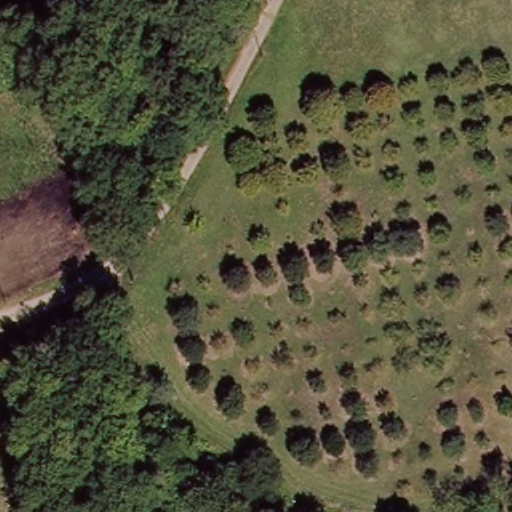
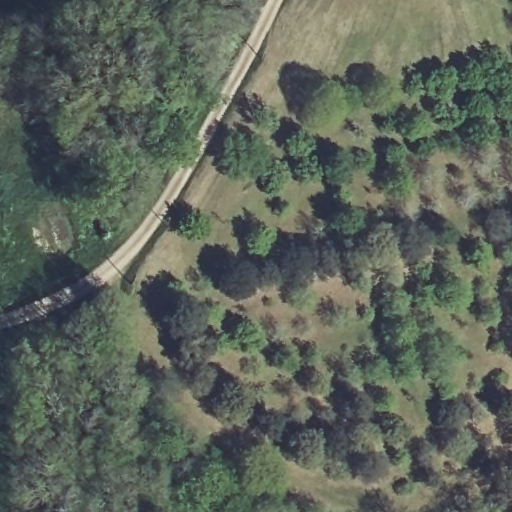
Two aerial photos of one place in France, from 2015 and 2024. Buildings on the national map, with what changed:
[]

